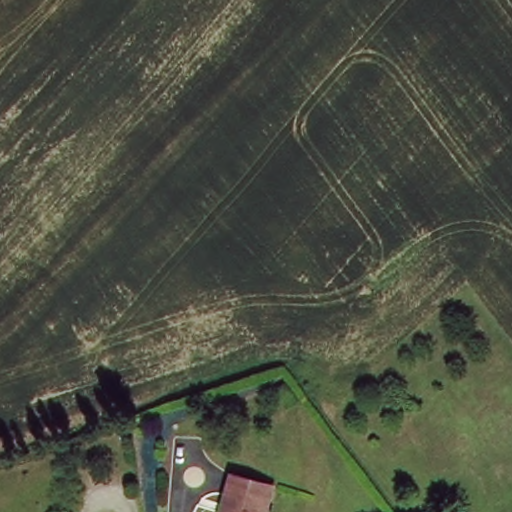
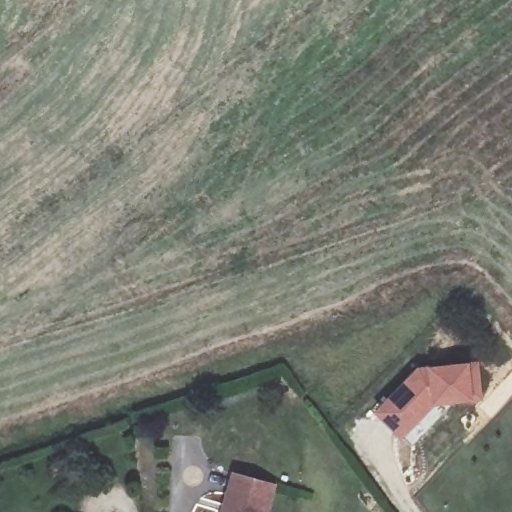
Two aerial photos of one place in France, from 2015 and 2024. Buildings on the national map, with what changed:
new [(418,367),(428,366),(469,362),(478,361),(482,401),(471,402),(433,406),(401,440),(373,414),(418,367)]
unchanged [(226,474),(265,483),(260,512),(220,512),(226,474)]

